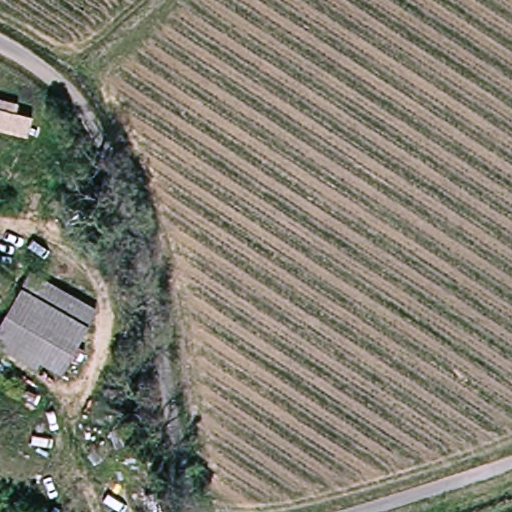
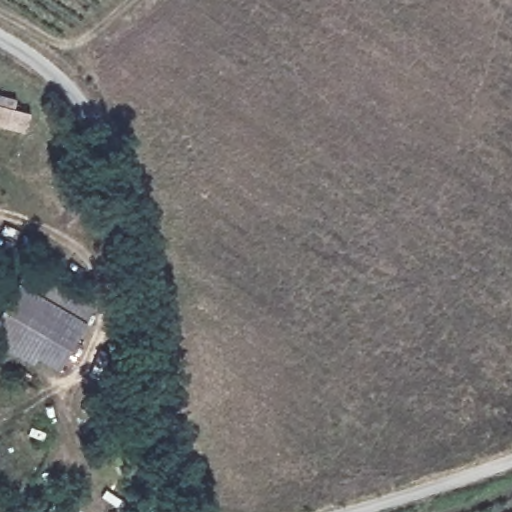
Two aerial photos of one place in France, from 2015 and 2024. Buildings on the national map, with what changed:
unchanged [(14,109),(26,111),(23,130),(0,126),(0,97),(15,100),(14,109)]
unchanged [(100,305),(62,371),(39,358),(35,368),(0,347),(0,315),(29,263),(100,305)]

